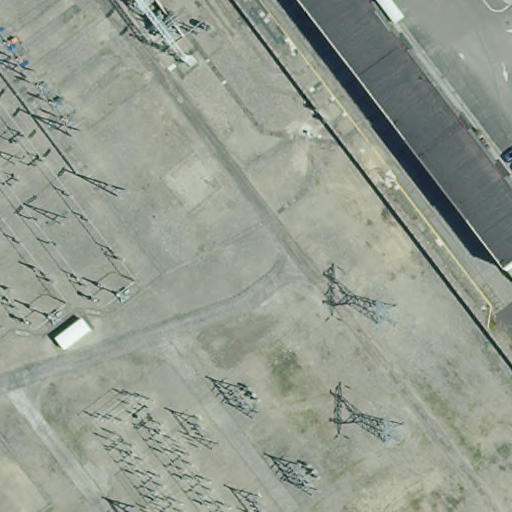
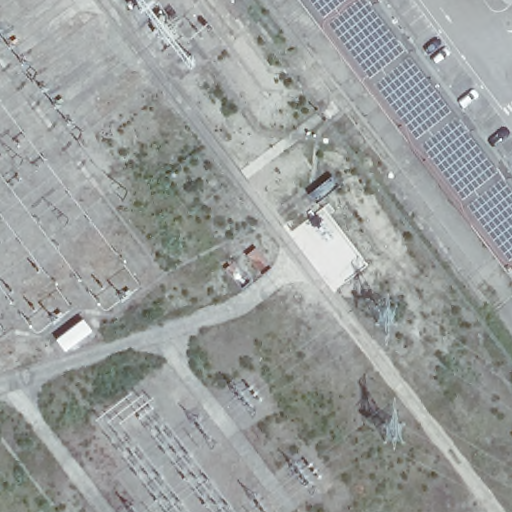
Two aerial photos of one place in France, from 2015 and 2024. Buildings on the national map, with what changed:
unchanged [(503,269),(298,0),(371,0),(512,185),(512,262),(503,269)]
unchanged [(377,189),(372,192),(365,184),(370,180),(377,189)]
unchanged [(427,255),(422,260),(415,250),(420,246),(427,255)]
unchanged [(455,292),(450,295),(442,286),(447,282),(455,292)]

